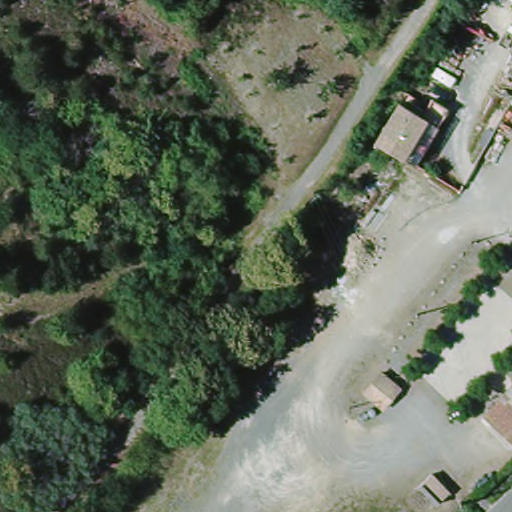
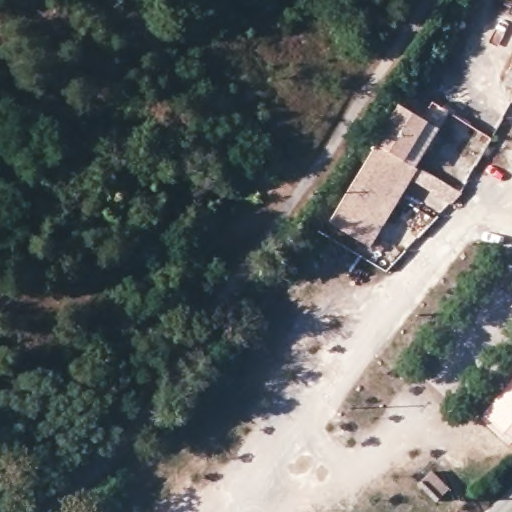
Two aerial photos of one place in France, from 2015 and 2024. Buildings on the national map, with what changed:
unchanged [(509,71),(512,65),(512,72),(509,71)]
unchanged [(395,104),(425,120),(403,161),(374,143),(395,104)]
new [(434,105),(447,113),(369,247),(330,224),(377,145),(403,161),(421,128),(425,120),(434,105)]
unchanged [(502,441),(507,436),(502,432),(500,429),(497,427),(494,425),(492,423),(485,416),(512,384),(512,449),(502,441)]

